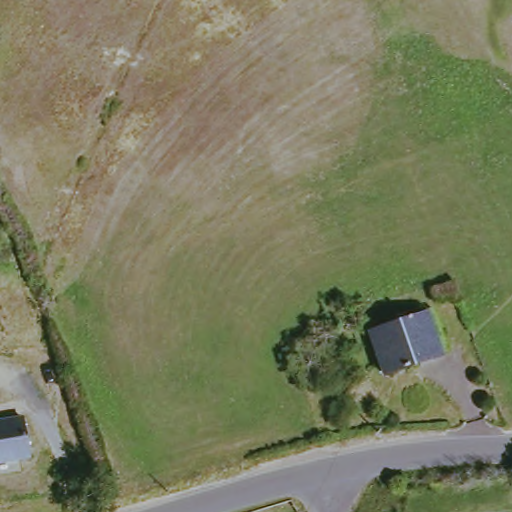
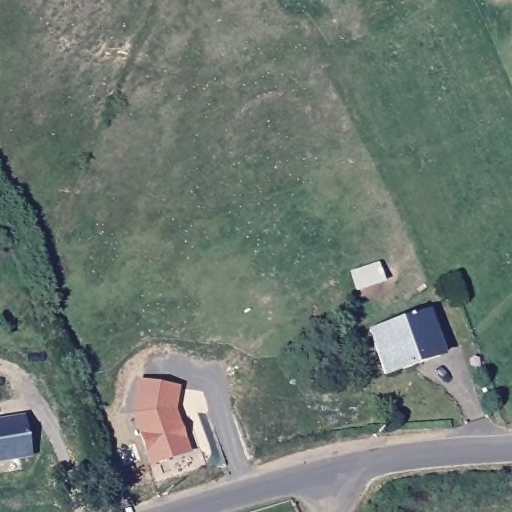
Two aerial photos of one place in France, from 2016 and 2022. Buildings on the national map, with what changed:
unchanged [(428,312),(441,355),(385,375),(371,331),(428,312)]
new [(147,457),(133,414),(140,381),(178,388),(174,413),(185,444),(147,457)]
unchanged [(0,461),(0,420),(25,416),(33,456),(0,461)]

